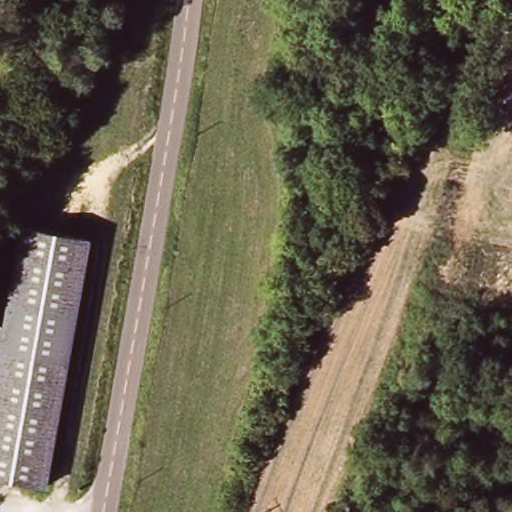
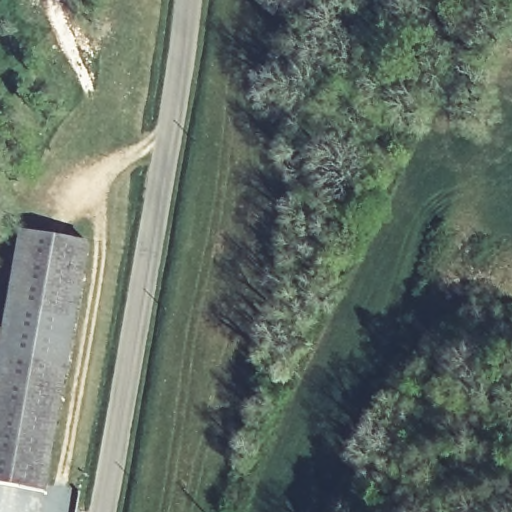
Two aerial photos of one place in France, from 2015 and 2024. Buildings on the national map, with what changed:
unchanged [(25,230),(92,244),(44,491),(0,483),(0,356),(5,329),(25,230)]
unchanged [(0,356),(0,328),(5,329),(0,356)]

